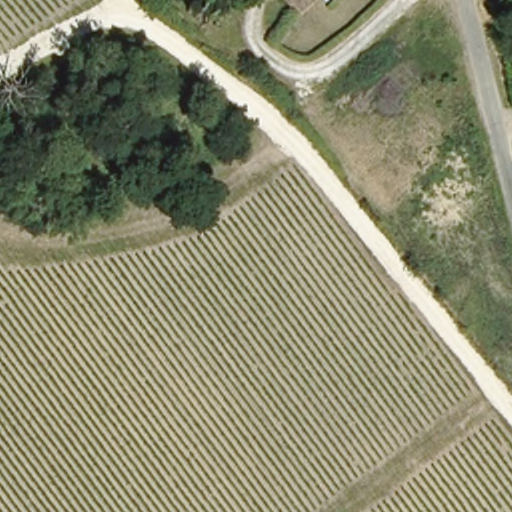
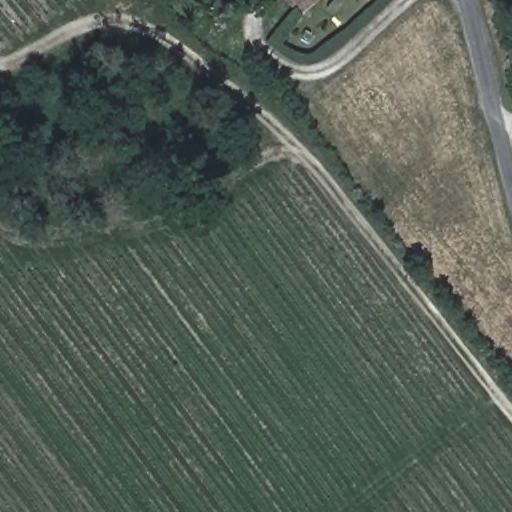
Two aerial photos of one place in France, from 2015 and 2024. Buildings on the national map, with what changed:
unchanged [(312,5),(308,0),(318,0),(312,5)]

